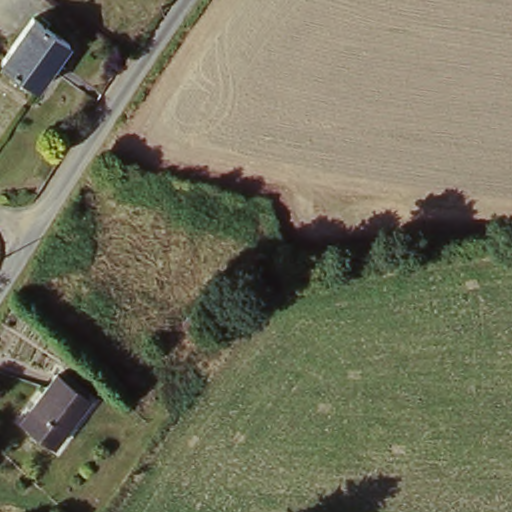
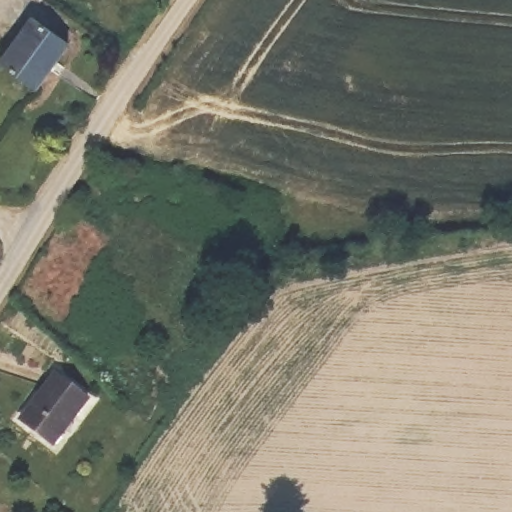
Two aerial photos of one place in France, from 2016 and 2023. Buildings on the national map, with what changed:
unchanged [(42,20),(77,47),(42,92),(6,65),(42,20)]
unchanged [(60,374),(92,397),(57,444),(25,420),(60,374)]

